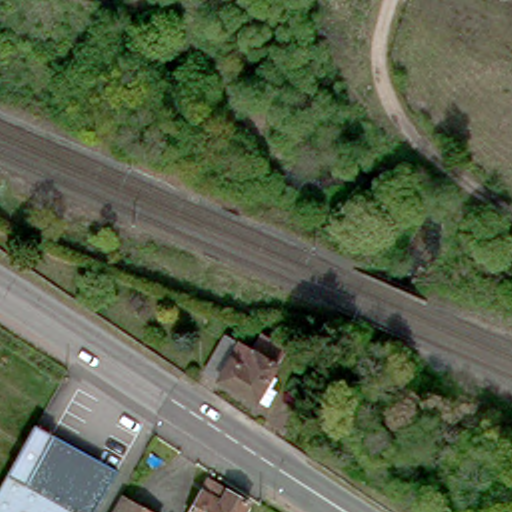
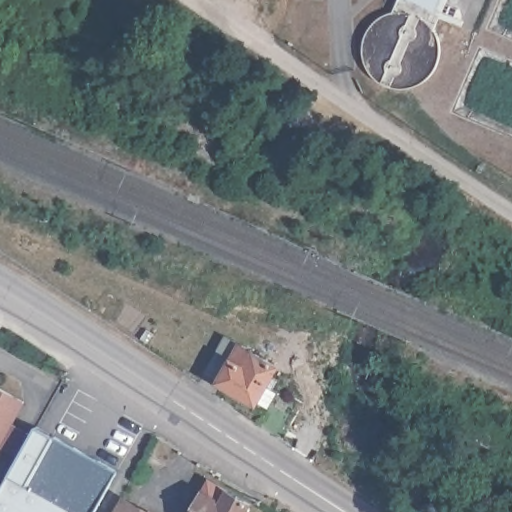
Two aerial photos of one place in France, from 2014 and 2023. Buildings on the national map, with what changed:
new [(411,0),(442,0),(437,10),(411,0)]
unchanged [(247,356),(257,340),(283,354),(270,379),(275,382),(269,393),(274,396),(266,412),(255,405),(252,408),(214,387),(216,384),(202,377),(222,340),(247,356)]
new [(0,450),(0,389),(26,403),(0,450)]
unchanged [(111,469),(87,512),(71,512),(69,511),(68,512),(0,512),(0,478),(30,424),(111,469)]
unchanged [(249,504),(245,512),(193,512),(209,483),(249,504)]
unchanged [(156,512),(127,512),(134,500),(156,512)]

